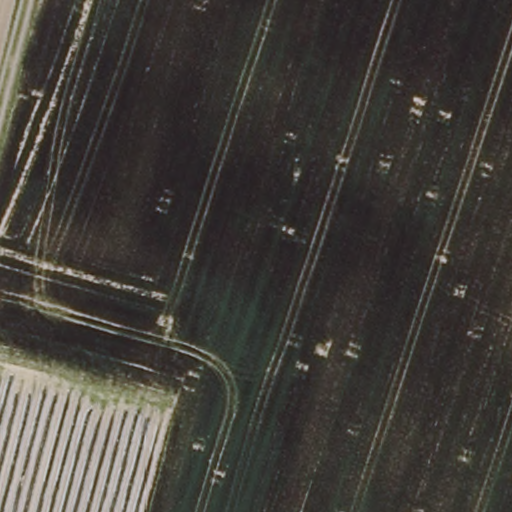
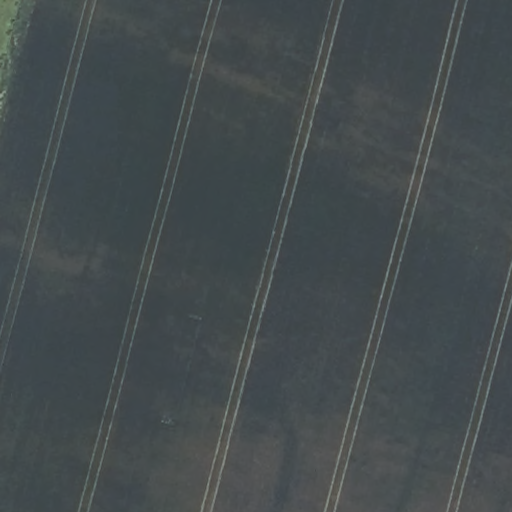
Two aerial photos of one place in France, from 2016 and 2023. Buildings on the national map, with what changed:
[]

